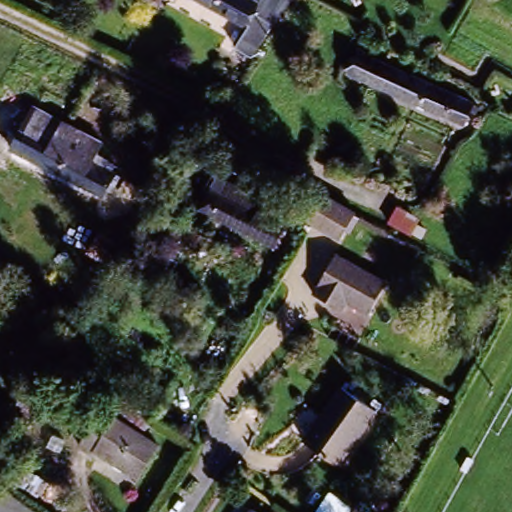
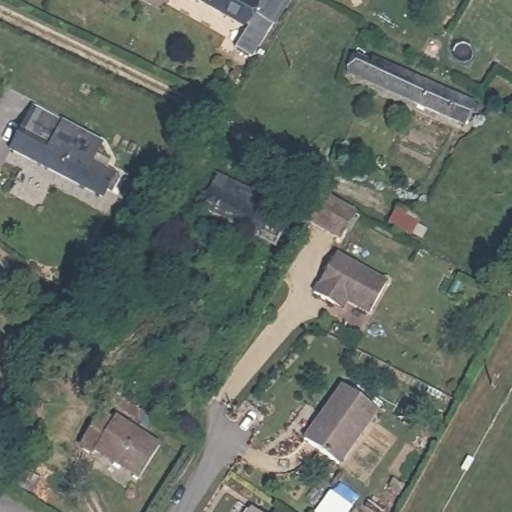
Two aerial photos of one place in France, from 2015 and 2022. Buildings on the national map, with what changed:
unchanged [(242,22),(200,0),(277,0),(275,2),(247,55),(230,45),(242,22)]
unchanged [(342,70),(357,44),(477,100),(464,128),(342,70)]
unchanged [(9,150),(24,121),(32,106),(112,147),(105,162),(114,167),(98,195),(9,150)]
unchanged [(290,216),(269,252),(192,211),(220,172),(290,216)]
unchanged [(354,210),(335,244),(304,227),(322,191),(354,210)]
unchanged [(324,287),(317,297),(298,285),(325,245),(378,280),(357,309),(324,287)]
unchanged [(30,355),(54,325),(67,335),(43,365),(30,355)]
unchanged [(306,437),(341,382),(378,405),(342,460),(306,437)]
unchanged [(102,452),(90,444),(112,414),(125,423),(161,448),(139,478),(102,452)]

